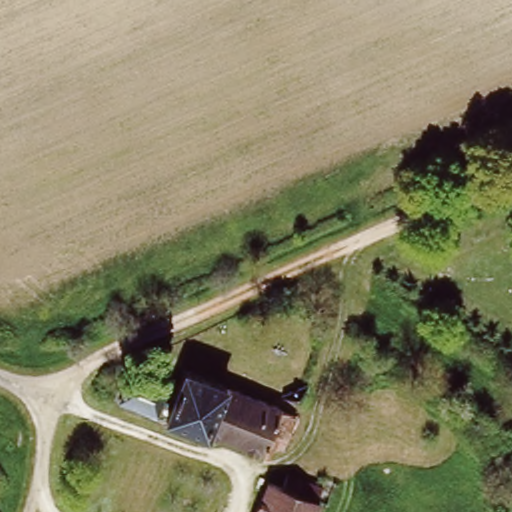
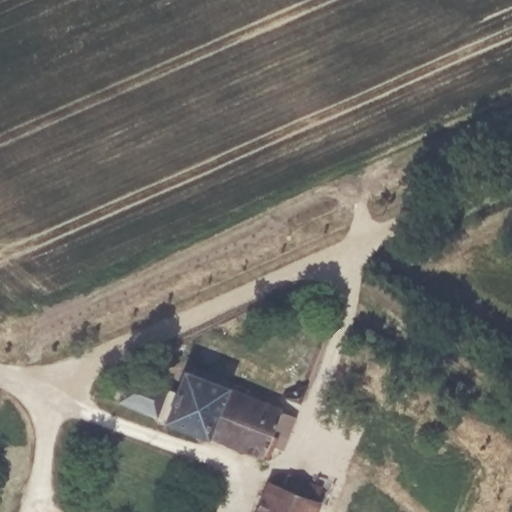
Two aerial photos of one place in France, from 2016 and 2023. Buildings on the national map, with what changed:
unchanged [(281,407),(279,412),(295,418),(282,451),(267,445),(262,457),(118,398),(128,372),(173,389),(183,367),(281,407)]
unchanged [(268,483),(283,489),(290,473),(320,485),(312,504),(320,508),(318,512),(256,512),(268,483)]

